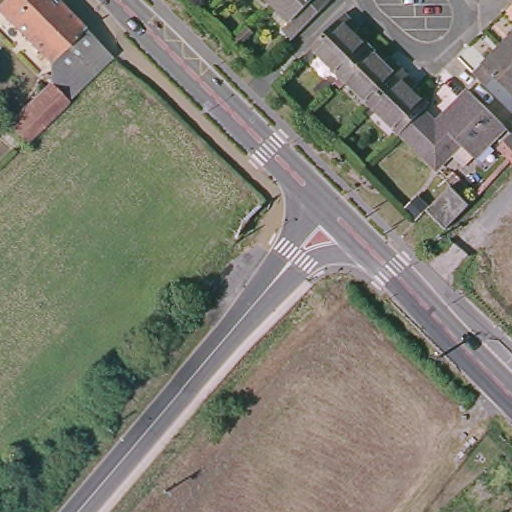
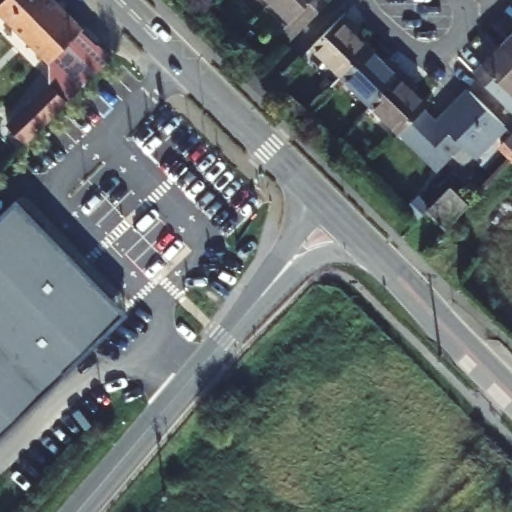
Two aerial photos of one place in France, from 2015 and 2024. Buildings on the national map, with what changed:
unchanged [(0,3),(3,0),(49,0),(78,29),(43,63),(0,19),(0,3)]
unchanged [(272,26),(280,18),(262,0),(319,0),(282,36),(272,26)]
unchanged [(342,17),(352,27),(347,32),(367,52),(340,79),(310,50),(342,17)]
unchanged [(78,29),(94,46),(60,79),(43,63),(78,29)]
unchanged [(512,39),(512,56),(503,47),(512,39)]
unchanged [(94,46),(107,59),(20,143),(7,129),(60,79),(94,46)]
unchanged [(478,63),(482,68),(503,47),(512,56),(512,90),(509,93),(512,97),(512,101),(506,106),(470,71),(478,63)]
unchanged [(367,52),(385,70),(391,64),(402,75),(370,108),(340,79),(367,52)]
unchanged [(402,75),(412,86),(408,91),(427,110),(418,120),(402,135),(400,138),(370,108),(402,75)]
unchanged [(418,120),(432,133),(471,93),(506,127),(470,165),(454,150),(436,168),(402,135),(418,120)]
unchanged [(510,147),(512,145),(512,149),(510,147)]
unchanged [(465,189),(477,201),(452,226),(435,209),(460,184),(465,189)]
new [(0,431),(0,216),(17,200),(123,311),(0,431)]
demolished [(503,298),(482,320),(460,298),(512,245),(512,289),(503,298)]
demolished [(493,331),(512,313),(512,350),(493,331)]

